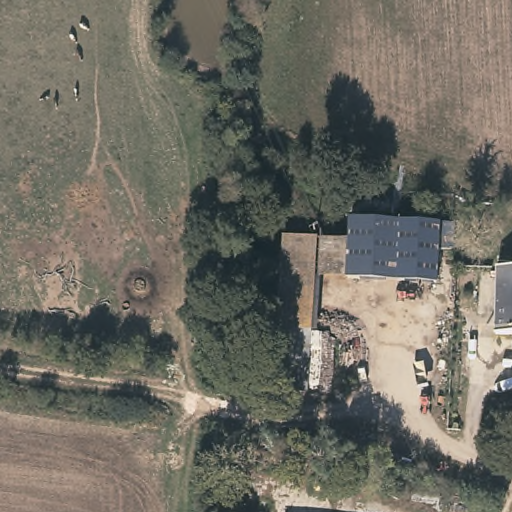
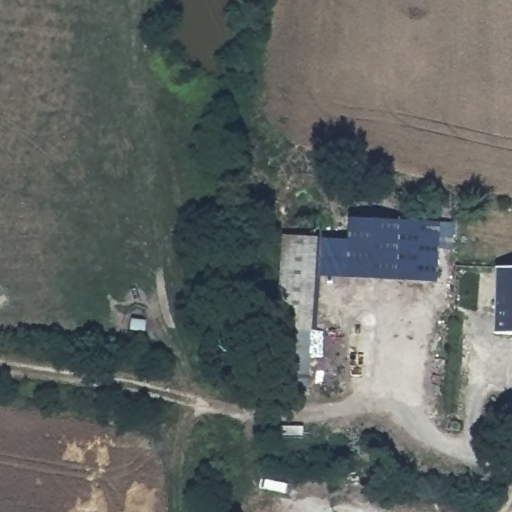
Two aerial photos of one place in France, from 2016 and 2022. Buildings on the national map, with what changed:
unchanged [(440,217),(456,218),(455,246),(439,246),(438,278),(348,272),(350,236),(352,213),(440,217)]
unchanged [(312,326),(283,324),(278,323),(284,234),(317,235),(315,270),(312,326)]
unchanged [(317,235),(350,236),(348,272),(315,270),(317,235)]
unchanged [(512,335),(497,335),(498,266),(512,267),(512,335)]
unchanged [(312,326),(312,334),(310,386),(309,389),(281,386),(283,324),(312,326)]

